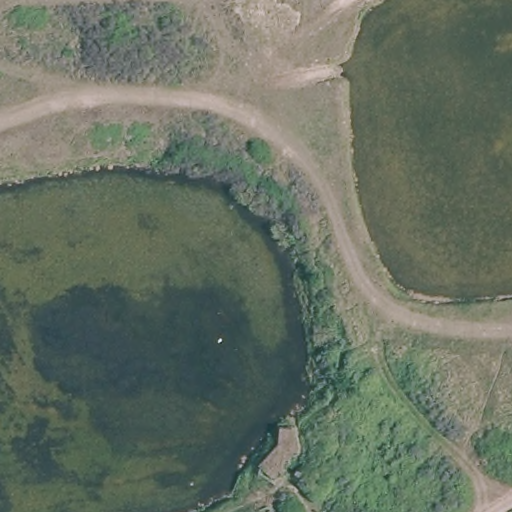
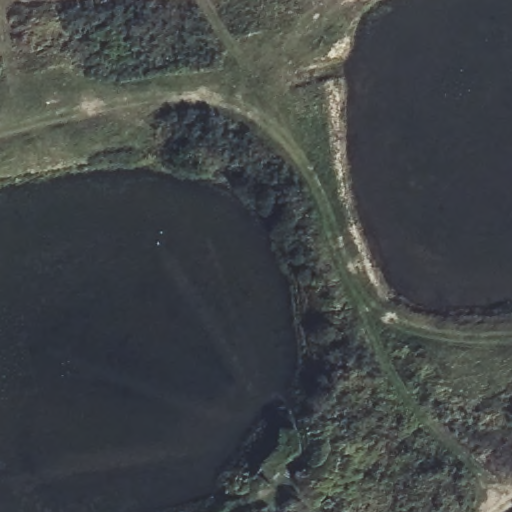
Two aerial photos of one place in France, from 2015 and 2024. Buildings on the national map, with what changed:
unchanged [(269,479),(255,468),(276,444),(290,456),(269,479)]

